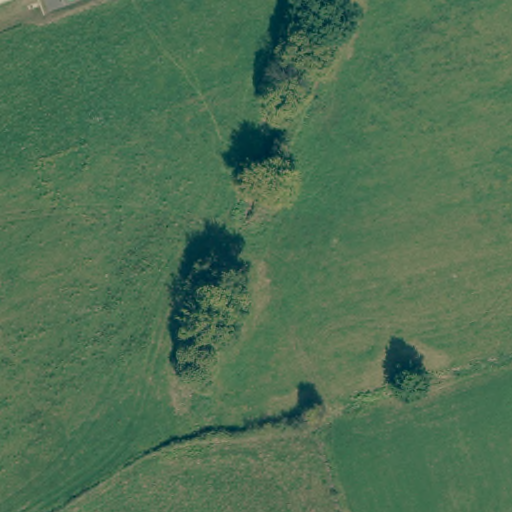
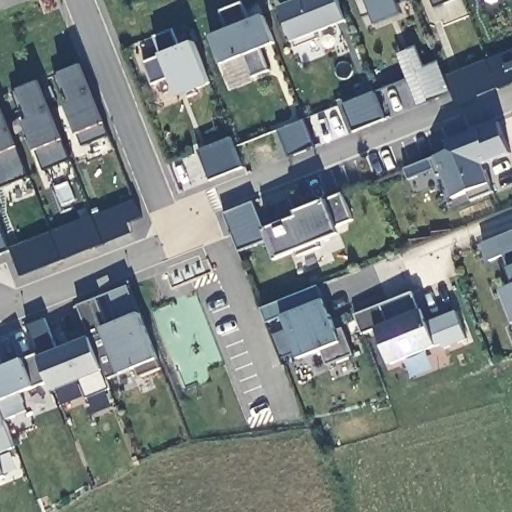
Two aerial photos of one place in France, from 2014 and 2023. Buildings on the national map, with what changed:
new [(291,0),(338,0),(347,21),(316,34),(318,39),(296,47),(293,43),(280,9),(292,4),(291,0)]
new [(404,16),(377,26),(371,14),(362,18),(356,0),(409,0),(400,4),(404,16)]
new [(244,4),(250,22),(264,16),(276,44),(262,49),(271,71),(252,79),(245,56),(222,65),(211,38),(229,30),(221,11),(244,4)]
new [(162,56),(154,39),(173,30),(180,48),(193,43),(210,85),(177,98),(170,79),(152,86),(143,64),(162,56)]
new [(417,48),(426,69),(439,63),(451,94),(417,106),(397,55),(417,48)]
new [(82,65),(111,136),(83,147),(67,105),(73,103),(69,92),(62,94),(55,76),(82,65)]
new [(375,93),(386,120),(353,131),(343,105),(375,93)]
new [(30,177),(2,188),(0,183),(0,101),(30,177)]
new [(305,120),(317,148),(288,158),(279,130),(305,120)]
new [(437,157),(450,151),(447,143),(498,123),(511,154),(482,164),(490,183),(493,192),(470,199),(467,194),(452,199),(440,168),(408,180),(406,169),(437,157)]
new [(232,139),(243,169),(210,182),(198,151),(232,139)]
new [(255,203),(266,230),(299,219),(297,213),(326,203),(344,195),(354,220),(337,227),(340,234),(320,243),(322,249),(297,258),(295,252),(278,258),(272,240),(239,252),(223,214),(255,203)]
new [(136,199),(143,218),(129,223),(133,233),(105,244),(94,216),(122,205),(136,199)]
new [(11,251),(0,255),(0,224),(11,251)]
new [(490,261),(483,243),(512,232),(512,275),(504,255),(490,261)]
new [(6,420),(0,407),(0,349),(7,366),(24,360),(37,355),(27,327),(45,320),(56,348),(66,344),(67,347),(91,338),(78,305),(130,287),(140,315),(158,359),(121,376),(108,379),(111,389),(87,399),(80,380),(53,391),(49,383),(35,389),(22,394),(27,412),(6,420)]
new [(318,287),(324,302),(336,332),(343,329),(355,356),(327,366),(321,351),(300,359),(282,319),(267,324),(262,309),(318,287)]
new [(512,287),(512,311),(504,290),(512,287)]
new [(412,294),(420,310),(425,324),(457,312),(468,342),(446,350),(443,345),(436,348),(390,365),(376,331),(362,336),(355,315),(412,294)]
new [(6,420),(16,448),(0,454),(0,407),(6,420)]
new [(6,478),(0,480),(0,462),(6,478)]

